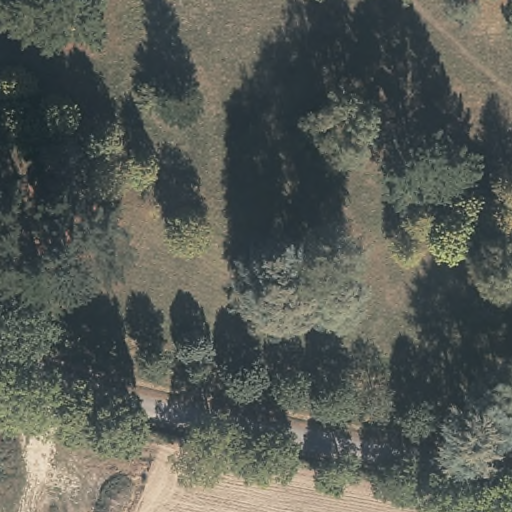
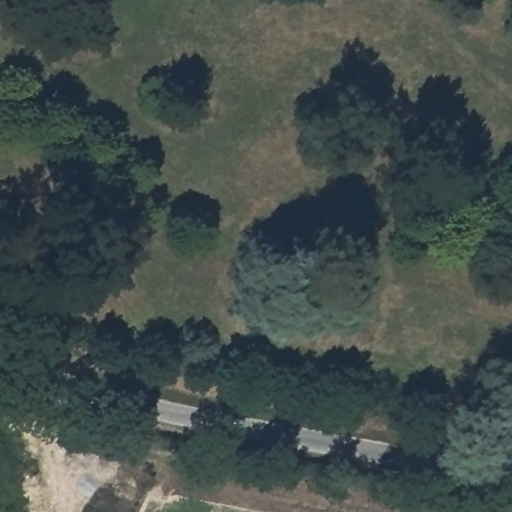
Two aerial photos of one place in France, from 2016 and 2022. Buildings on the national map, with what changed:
[]

